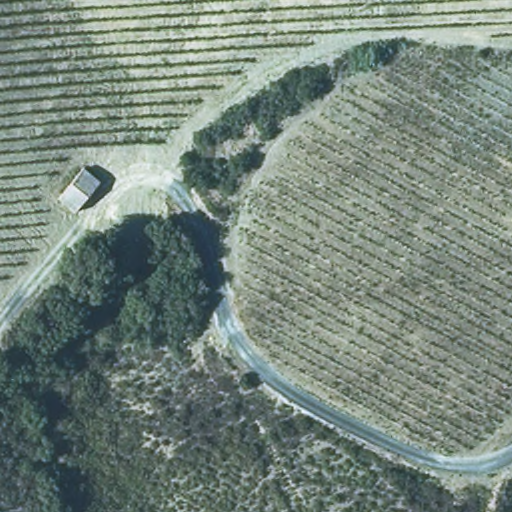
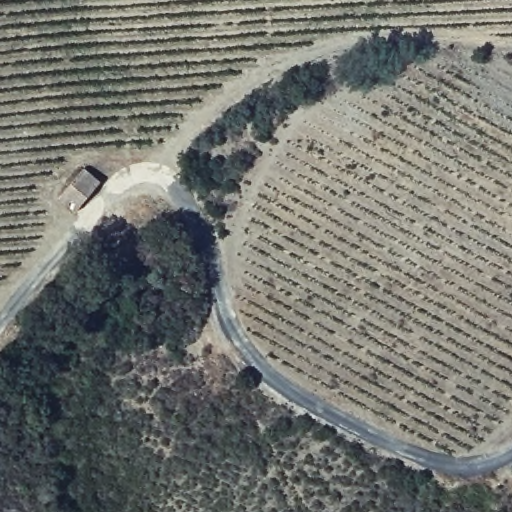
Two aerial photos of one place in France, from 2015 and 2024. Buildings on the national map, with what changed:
unchanged [(58,195),(85,166),(102,179),(77,208),(58,195)]

